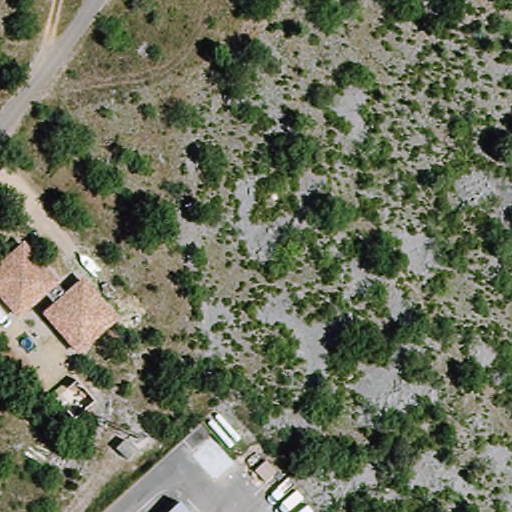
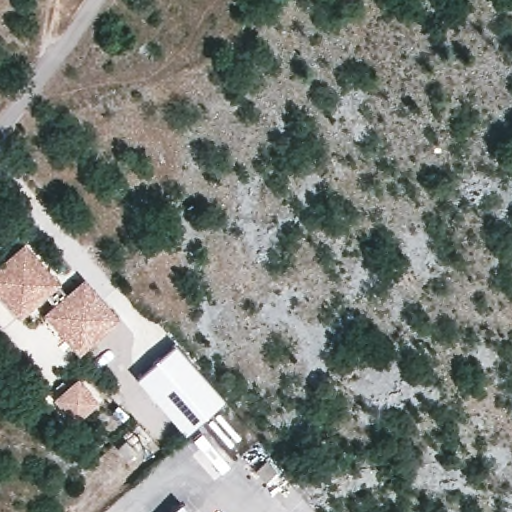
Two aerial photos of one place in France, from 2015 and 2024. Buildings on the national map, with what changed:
unchanged [(61,296),(82,279),(118,323),(75,357),(41,316),(48,308),(41,299),(14,321),(0,304),(0,262),(22,243),(61,296)]
new [(225,402),(186,435),(136,379),(176,344),(225,402)]
new [(97,402),(76,420),(58,399),(79,381),(97,402)]
unchanged [(180,502),(187,512),(169,512),(180,502)]

